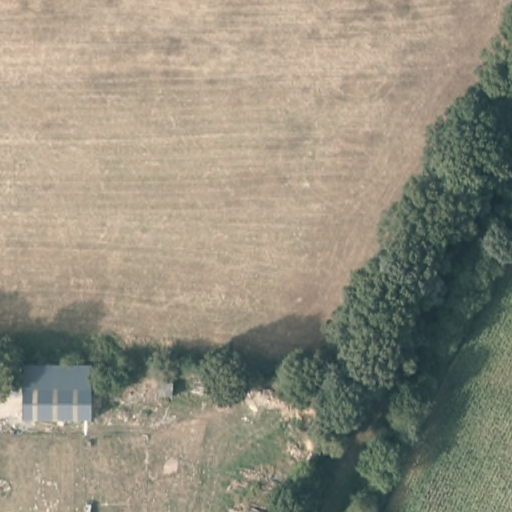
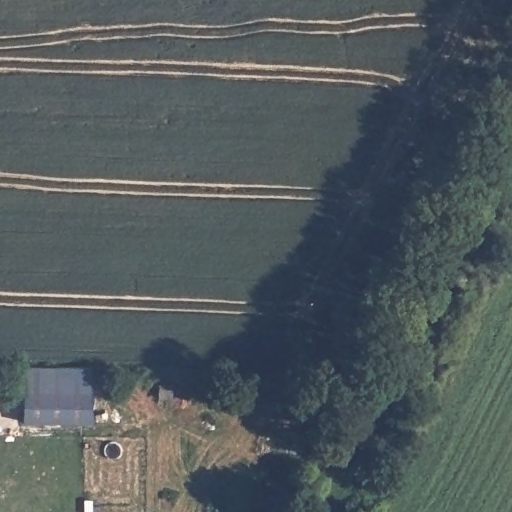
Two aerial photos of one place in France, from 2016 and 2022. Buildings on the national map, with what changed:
unchanged [(22,422),(22,390),(24,367),(90,367),(90,390),(90,423),(22,422)]

